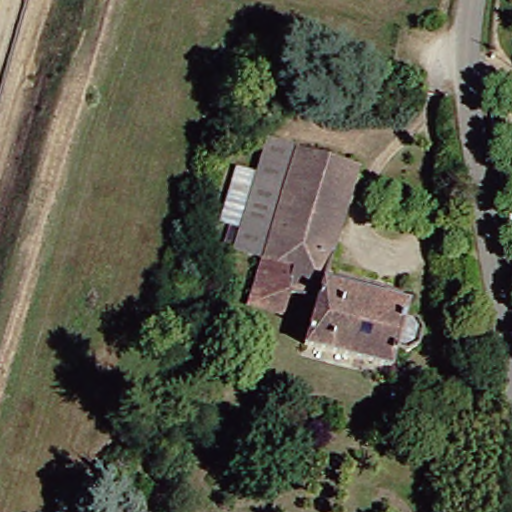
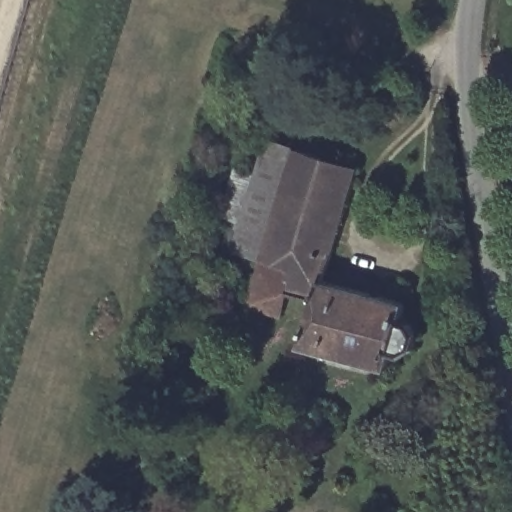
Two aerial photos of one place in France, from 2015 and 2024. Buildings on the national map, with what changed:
unchanged [(242,191),(258,139),(289,148),(272,200),(242,191)]
unchanged [(289,148),(352,167),(336,219),(272,200),(289,148)]
unchanged [(226,247),(242,191),(272,200),(255,256),(226,247)]
unchanged [(297,343),(312,297),(278,286),(285,265),(255,256),(272,200),(336,219),(318,278),(360,290),(341,355),(297,343)]
unchanged [(272,308),(241,299),(255,256),(285,265),(278,286),(272,308)]
unchanged [(360,290),(402,302),(397,321),(400,321),(406,323),(411,327),(415,331),(411,344),(402,350),(391,347),(384,368),(341,355),(360,290)]

